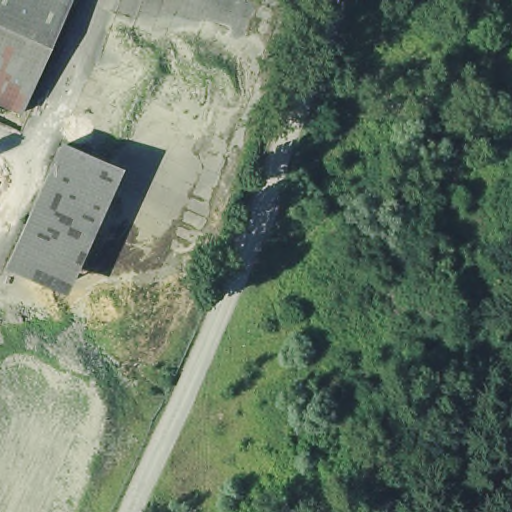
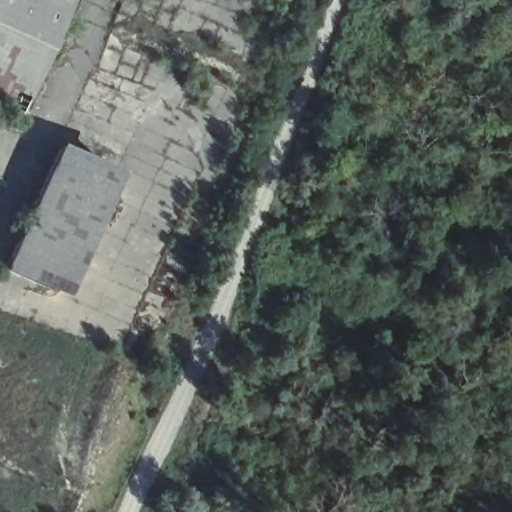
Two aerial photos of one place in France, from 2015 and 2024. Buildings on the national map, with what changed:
unchanged [(0,0),(84,0),(30,120),(5,109),(23,70),(0,60),(0,0)]
unchanged [(0,106),(0,60),(23,70),(5,109),(0,106)]
unchanged [(67,146),(115,168),(59,290),(12,268),(67,146)]
unchanged [(6,204),(0,201),(0,178),(15,185),(6,204)]

